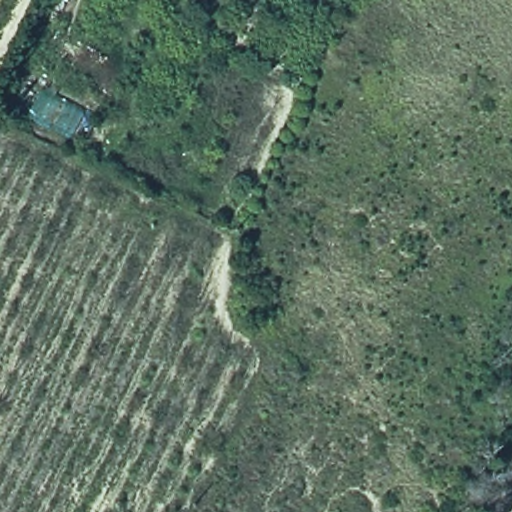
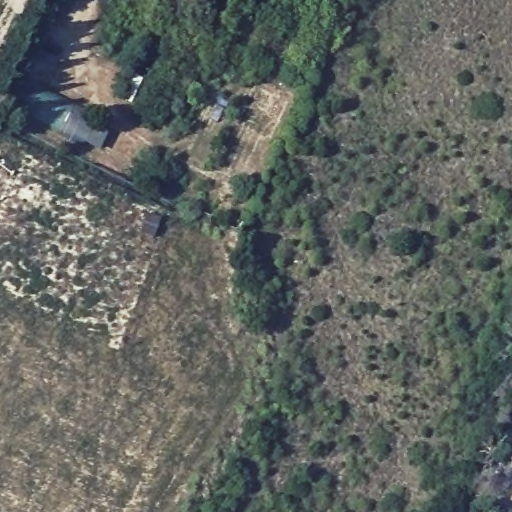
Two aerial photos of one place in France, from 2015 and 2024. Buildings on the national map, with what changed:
unchanged [(85,111),(68,143),(26,124),(43,93),(85,111)]

